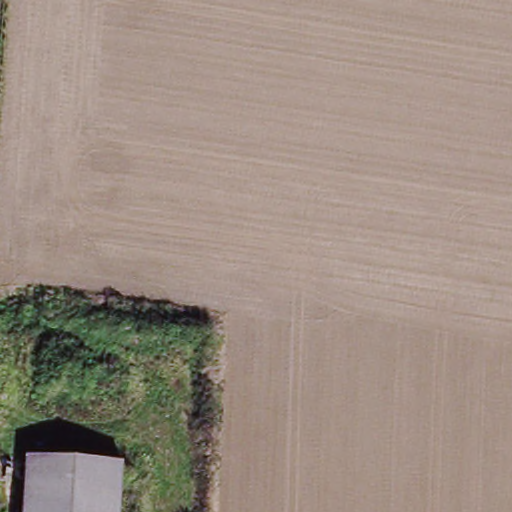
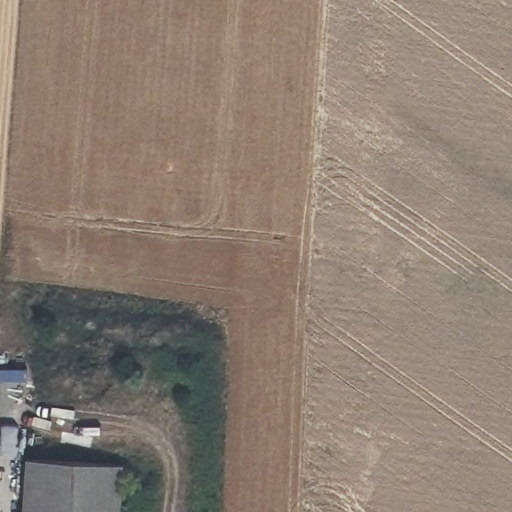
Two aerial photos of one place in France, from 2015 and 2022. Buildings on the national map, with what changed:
unchanged [(124,512),(22,512),(27,459),(127,468),(124,512)]

